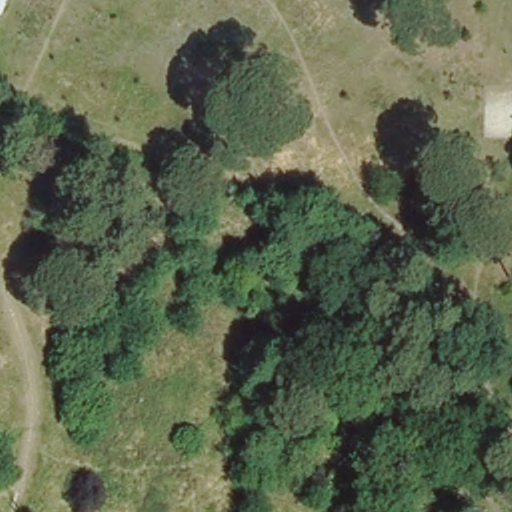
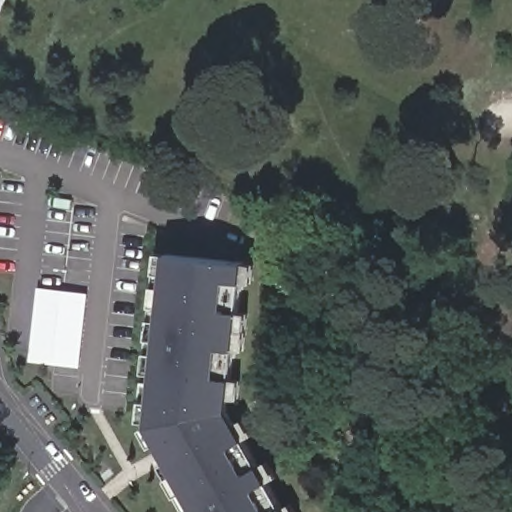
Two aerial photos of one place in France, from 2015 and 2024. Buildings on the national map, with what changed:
unchanged [(0,11),(0,0),(4,0),(0,11)]
new [(183,511),(174,495),(168,480),(159,467),(166,465),(156,445),(148,448),(139,431),(147,428),(141,418),(158,253),(167,254),(244,261),(254,262),(251,283),(243,283),(239,312),(249,313),(244,351),(234,350),(230,378),(239,378),(238,399),(225,399),(225,409),(233,424),(243,418),(254,435),(245,441),(259,466),(267,461),(275,479),(268,483),(281,507),(290,502),(295,512),(191,512),(189,509),(183,511)]
new [(28,361),(37,287),(61,290),(88,293),(79,367),(53,364),(28,361)]

